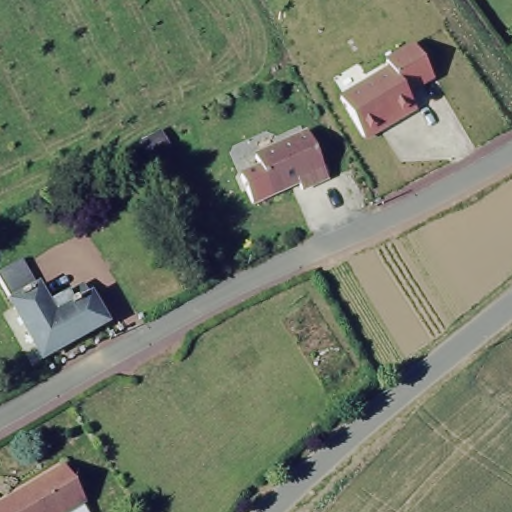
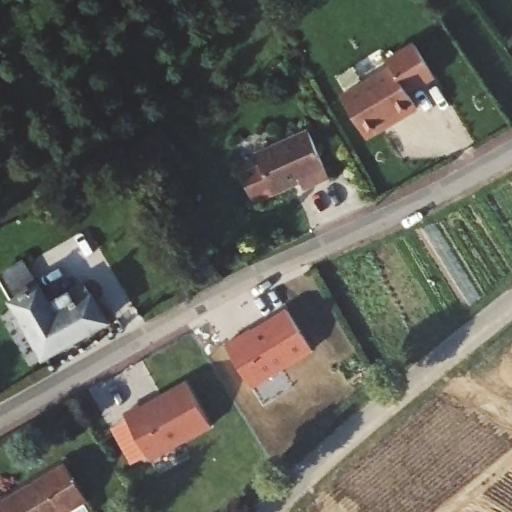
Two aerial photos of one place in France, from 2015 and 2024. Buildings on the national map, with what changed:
unchanged [(400,55),(397,48),(424,33),(442,65),(415,81),(423,95),(404,106),(404,105),(390,113),(389,117),(370,128),(365,128),(342,89),(400,55)]
unchanged [(155,125),(169,146),(153,157),(139,134),(139,133),(155,125)]
unchanged [(309,133),(329,175),(303,188),(300,181),(253,205),(241,177),(261,167),(259,157),(309,133)]
unchanged [(204,245),(212,265),(199,272),(190,253),(204,245)]
unchanged [(22,263),(47,305),(82,283),(105,321),(42,357),(0,283),(0,276),(22,263)]
new [(225,343),(287,308),(312,351),(253,388),(225,343)]
new [(149,462),(122,414),(184,380),(211,428),(149,462)]
unchanged [(62,465),(85,504),(89,512),(0,512),(0,502),(62,465)]

